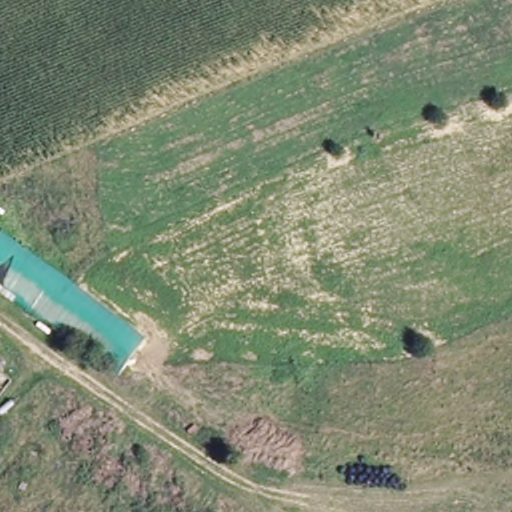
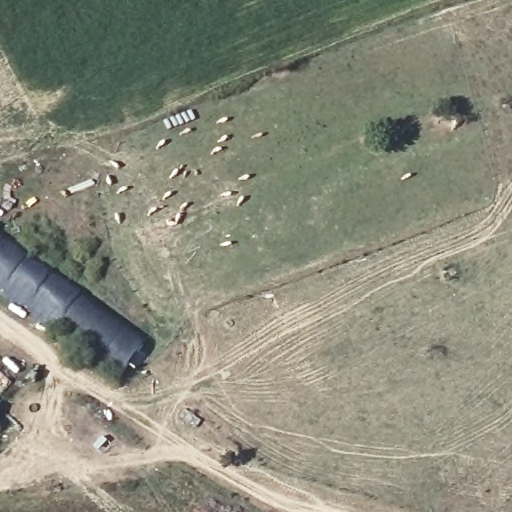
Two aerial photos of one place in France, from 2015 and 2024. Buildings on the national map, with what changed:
unchanged [(0,228),(150,338),(122,373),(0,285),(0,228)]

